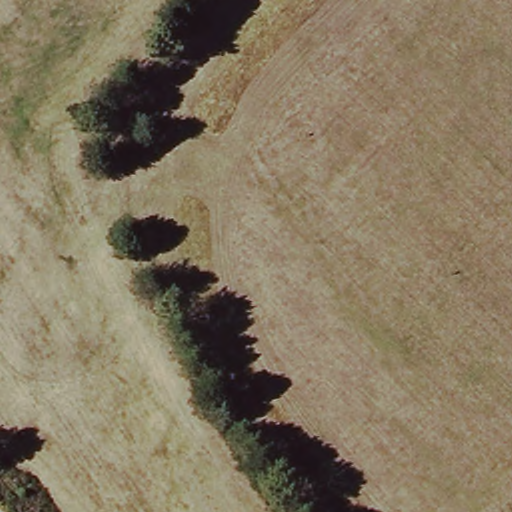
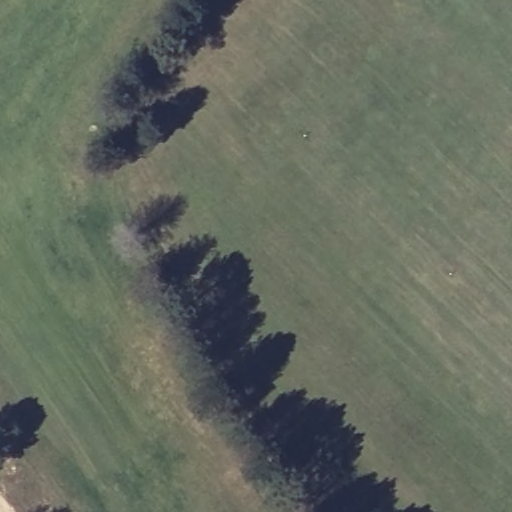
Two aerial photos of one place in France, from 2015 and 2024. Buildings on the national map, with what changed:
[]

